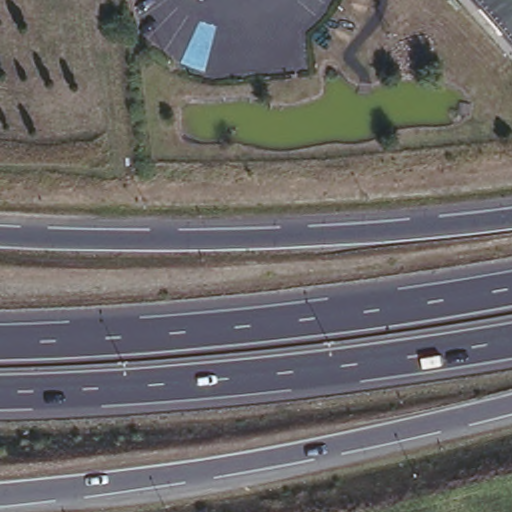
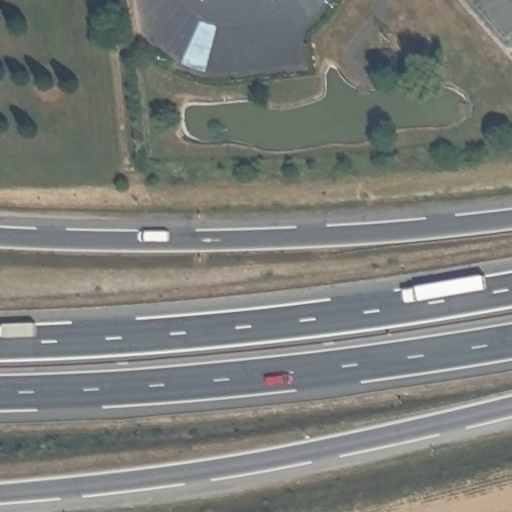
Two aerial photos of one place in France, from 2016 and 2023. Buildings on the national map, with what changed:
unchanged [(512,34),(481,0),(512,0),(512,34)]

